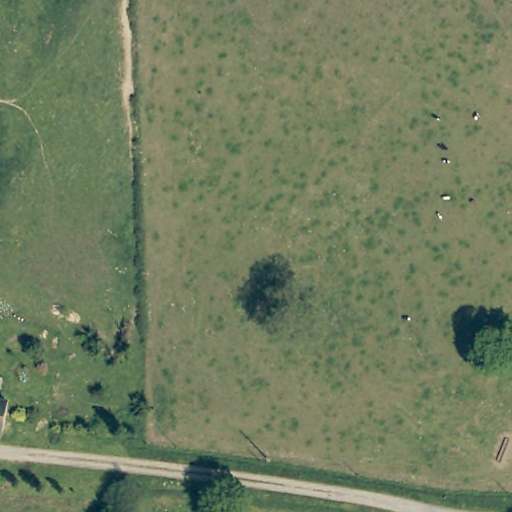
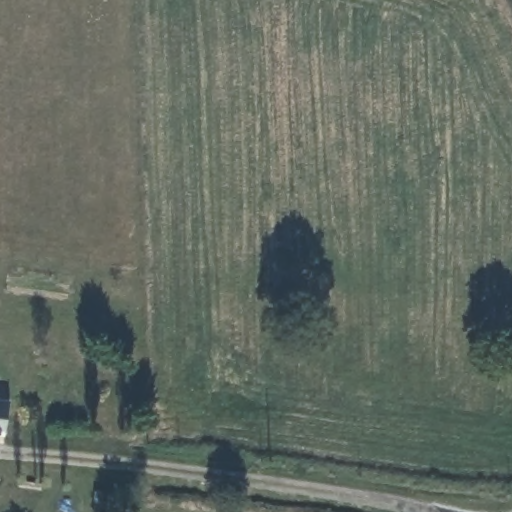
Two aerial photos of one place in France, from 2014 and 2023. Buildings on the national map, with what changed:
unchanged [(2,431),(0,431),(0,397),(7,398),(2,431)]

